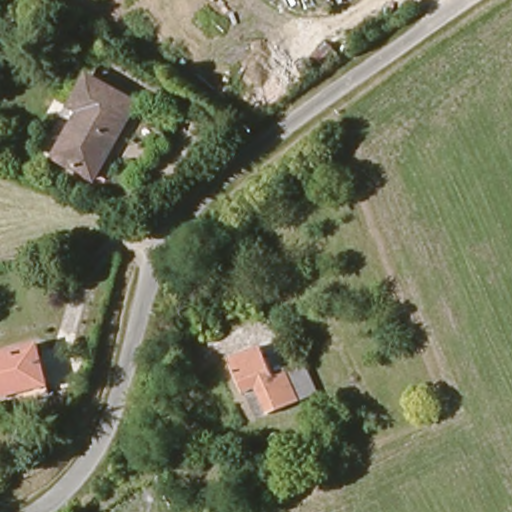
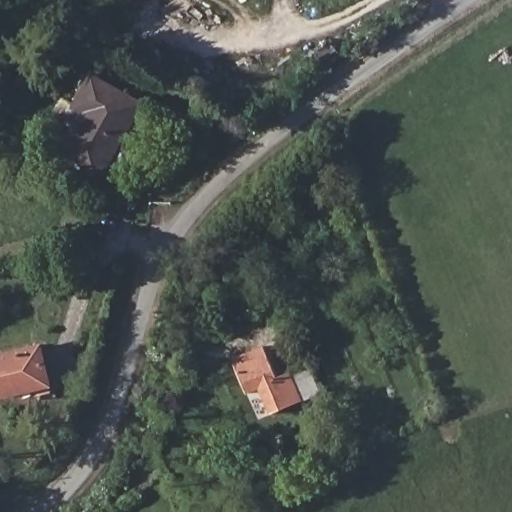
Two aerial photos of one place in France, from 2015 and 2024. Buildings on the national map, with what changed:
unchanged [(103,176),(67,153),(84,132),(70,120),(105,76),(151,109),(103,176)]
unchanged [(271,418),(257,392),(247,397),(232,365),(264,350),(279,381),(306,368),(319,396),(271,418)]
unchanged [(49,386),(0,401),(0,363),(39,351),(49,386)]

